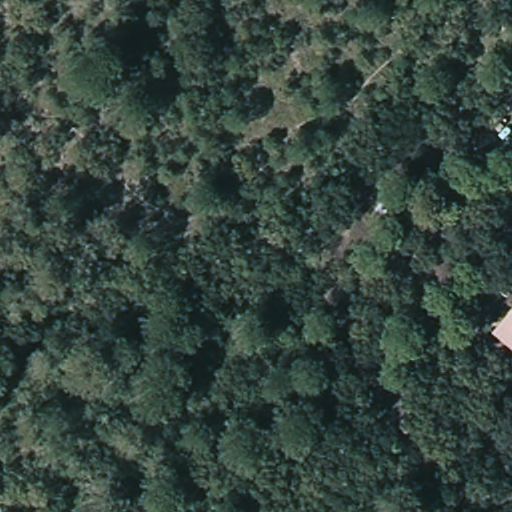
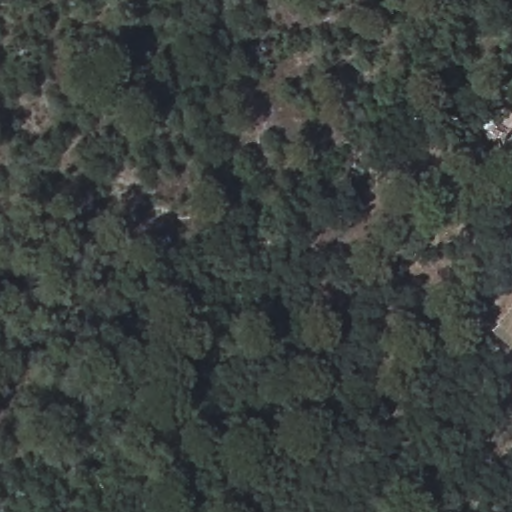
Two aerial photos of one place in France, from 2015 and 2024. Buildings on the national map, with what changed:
unchanged [(509,141),(512,138),(512,144),(509,141)]
unchanged [(512,307),(512,351),(491,333),(512,307)]

